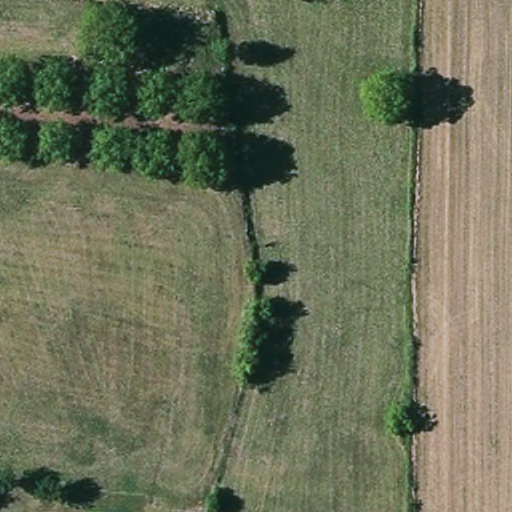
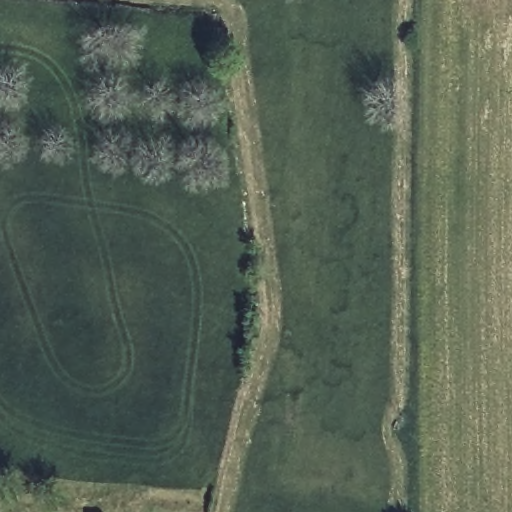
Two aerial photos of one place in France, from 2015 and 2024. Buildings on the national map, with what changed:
[]

